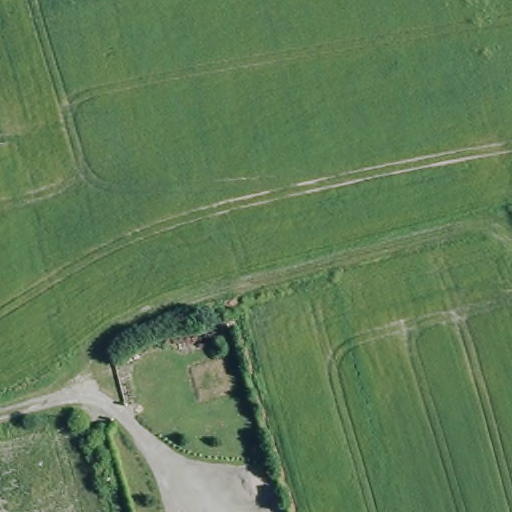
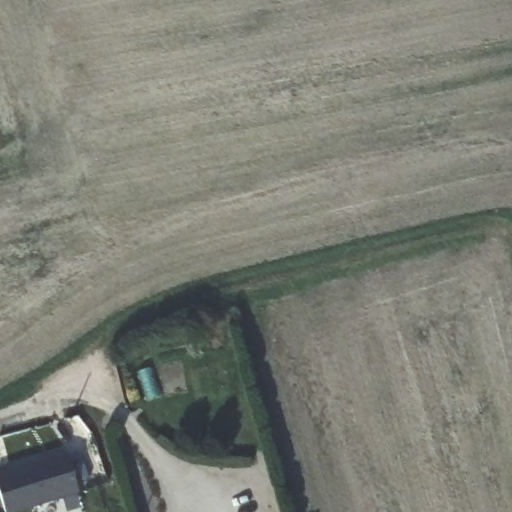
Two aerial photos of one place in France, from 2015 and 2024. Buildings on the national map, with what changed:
new [(79,493),(18,512),(4,512),(0,498),(0,473),(65,452),(79,493)]

